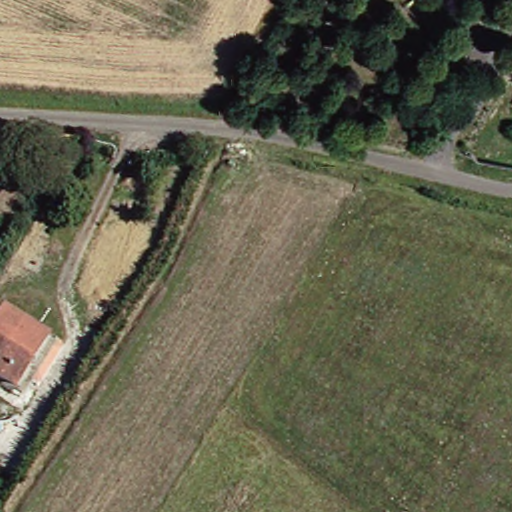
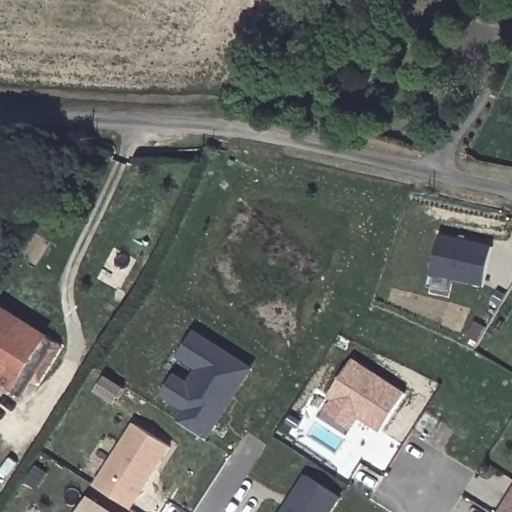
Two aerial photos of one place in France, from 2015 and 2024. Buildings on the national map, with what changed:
new [(439,235),(492,246),(483,284),(430,273),(439,235)]
unchanged [(15,387),(0,378),(0,317),(4,309),(46,336),(15,387)]
new [(175,377),(188,385),(199,369),(180,356),(195,334),(250,369),(235,391),(231,388),(213,417),(217,420),(205,439),(178,422),(186,409),(163,395),(175,377)]
unchanged [(63,346),(38,387),(29,382),(20,397),(11,392),(15,387),(46,336),(63,346)]
new [(328,396),(353,359),(406,394),(381,431),(359,416),(350,429),(325,412),(333,400),(328,396)]
new [(129,508),(93,485),(133,423),(168,446),(153,469),(146,480),(129,508)]
new [(291,499),(306,475),(341,497),(332,512),(283,512),(285,507),(291,499)]
new [(512,512),(501,512),(512,494),(512,512)]
new [(86,499),(106,512),(78,512),(86,499)]

